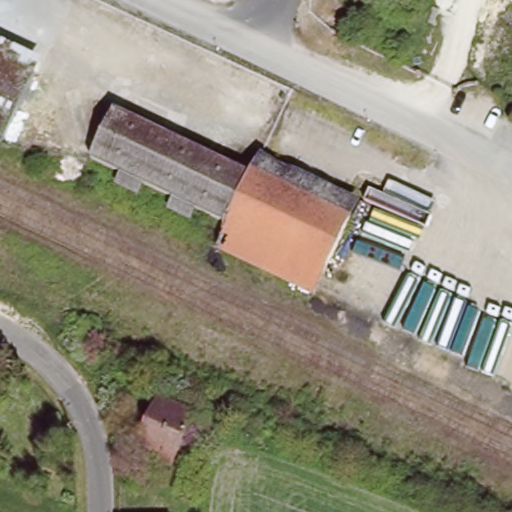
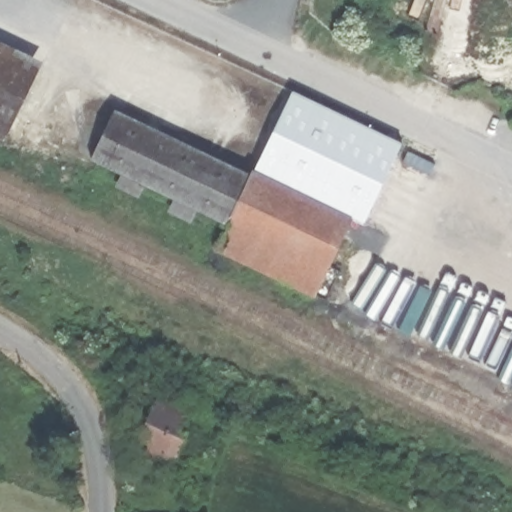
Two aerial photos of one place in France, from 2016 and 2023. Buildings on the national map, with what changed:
unchanged [(33,71),(0,144),(0,40),(39,57),(33,71)]
new [(255,169),(257,170),(293,92),(405,145),(367,224),(351,217),(358,202),(267,160),(257,179),(251,176),(255,169)]
unchanged [(230,231),(89,165),(115,114),(257,179),(230,231)]
unchanged [(358,202),(349,221),(257,179),(267,160),(358,202)]
unchanged [(349,221),(311,294),(219,252),(230,231),(257,179),(349,221)]
unchanged [(196,416),(176,461),(147,448),(150,443),(145,441),(157,412),(167,416),(172,405),(196,416)]
unchanged [(241,433),(237,440),(216,428),(220,422),(241,433)]

